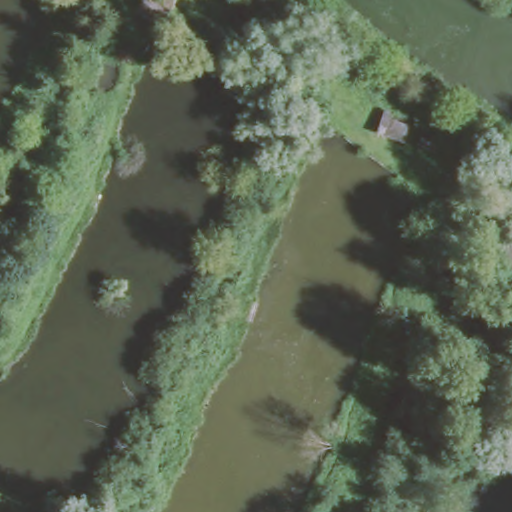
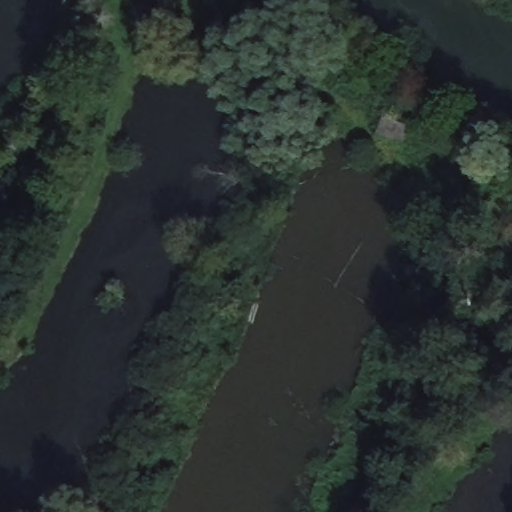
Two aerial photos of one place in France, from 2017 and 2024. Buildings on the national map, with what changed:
unchanged [(135,2),(137,0),(167,0),(153,17),(135,2)]
unchanged [(415,124),(411,133),(436,142),(432,154),(401,144),(396,159),(368,148),(378,112),(415,124)]

